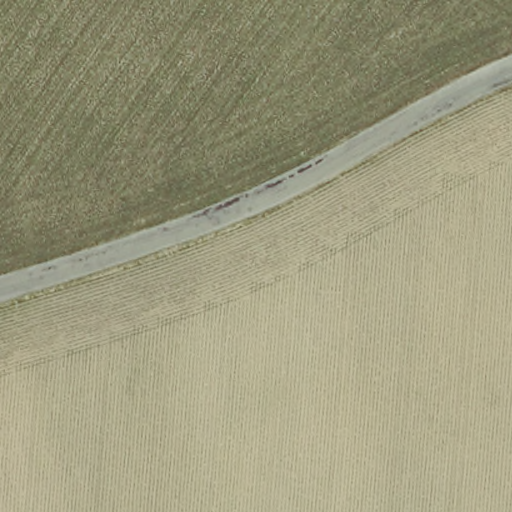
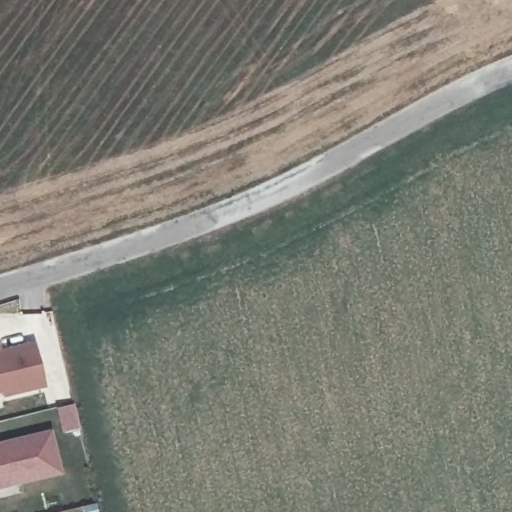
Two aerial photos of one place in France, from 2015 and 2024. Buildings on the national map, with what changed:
new [(2,348),(36,341),(44,387),(2,397),(1,392),(0,392),(0,341),(2,348)]
new [(51,428),(61,473),(0,488),(0,441),(51,428)]

